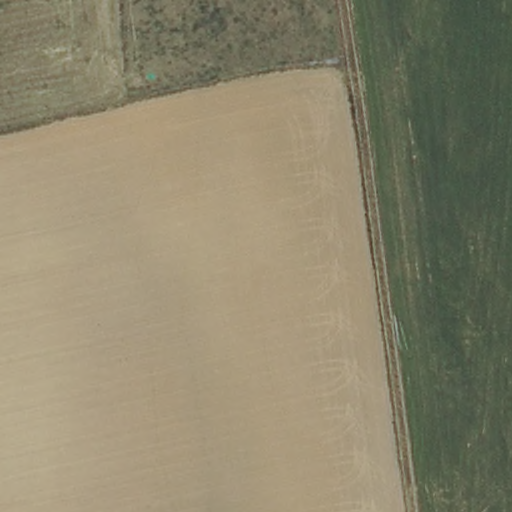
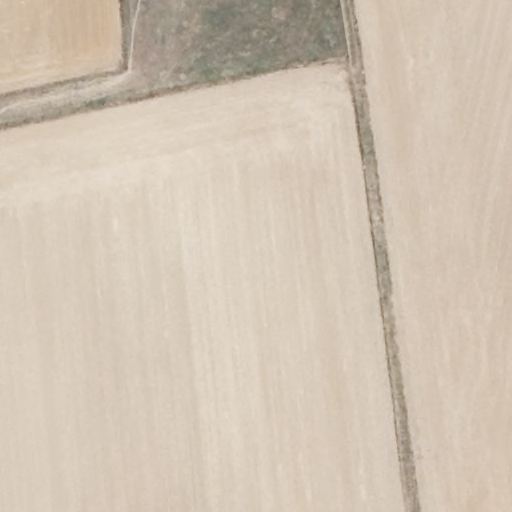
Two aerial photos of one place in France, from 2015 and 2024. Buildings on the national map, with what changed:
[]

